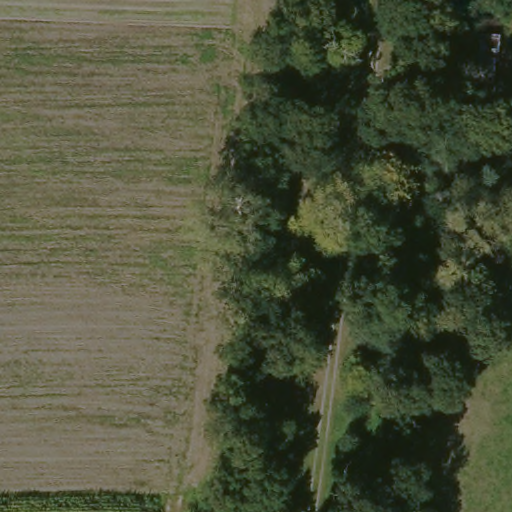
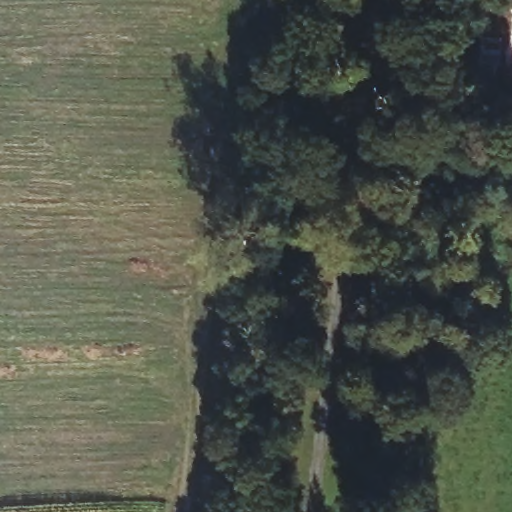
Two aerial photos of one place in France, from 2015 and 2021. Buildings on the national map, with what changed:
unchanged [(498,43),(489,105),(462,99),(471,41),(498,43)]

